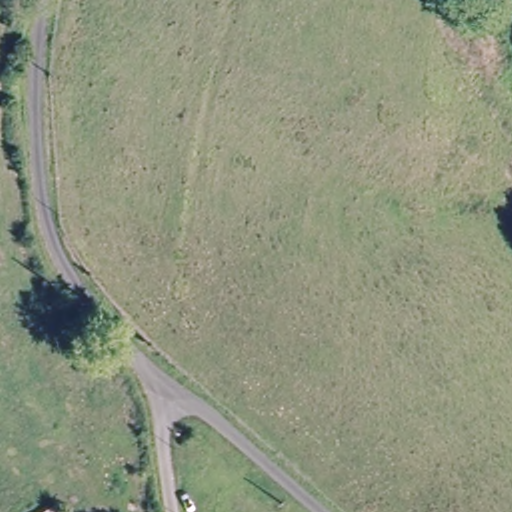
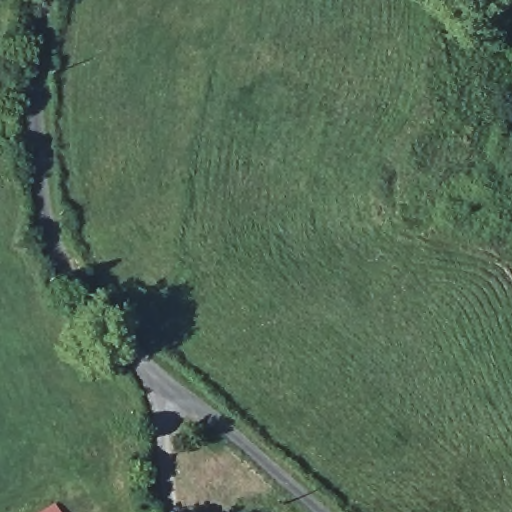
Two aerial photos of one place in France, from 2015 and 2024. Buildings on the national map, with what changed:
unchanged [(52,505),(58,512),(42,512),(52,505)]

